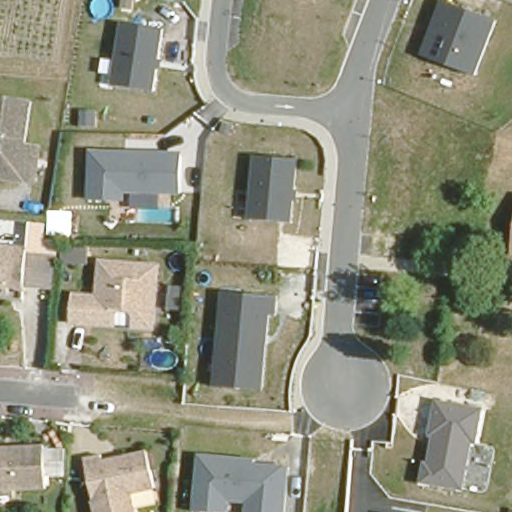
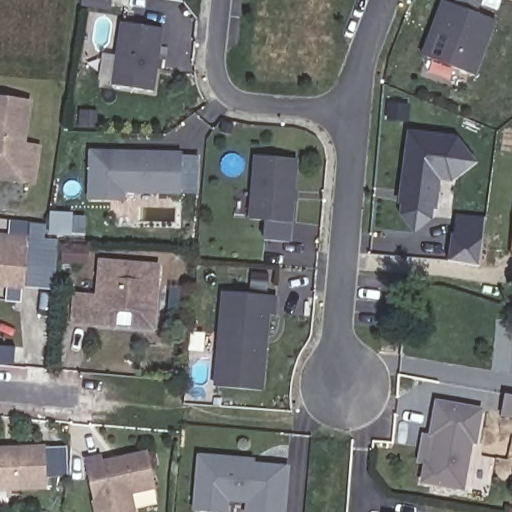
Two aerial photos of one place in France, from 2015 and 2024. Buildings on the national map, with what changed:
unchanged [(476,75),(425,56),(446,1),(497,21),(476,75)]
unchanged [(155,91),(112,85),(125,22),(165,27),(155,91)]
unchanged [(30,102),(24,144),(39,146),(34,184),(16,181),(0,179),(0,98),(30,102)]
new [(406,131),(457,137),(475,162),(452,182),(440,181),(436,210),(434,210),(433,220),(415,235),(400,216),(406,131)]
unchanged [(181,194),(162,193),(162,207),(131,207),(131,194),(128,194),(127,201),(89,199),(92,149),(185,152),(181,194)]
unchanged [(291,222),(247,218),(254,156),(297,159),(291,222)]
new [(455,216),(483,220),(477,264),(447,261),(455,216)]
unchanged [(512,236),(512,247),(510,247),(512,236)]
unchanged [(42,252),(42,242),(57,242),(54,294),(22,291),(26,251),(42,252)]
unchanged [(0,288),(0,248),(26,251),(22,291),(0,288)]
unchanged [(128,334),(129,323),(125,318),(118,317),(112,322),(110,333),(65,328),(69,301),(92,303),(95,268),(156,274),(150,337),(128,334)]
unchanged [(278,315),(270,315),(264,390),(214,385),(224,290),(278,295),(278,315)]
unchanged [(476,451),(471,450),(463,489),(420,482),(425,461),(428,461),(431,437),(426,436),(434,401),(485,410),(476,451)]
unchanged [(286,512),(244,512),(245,502),(232,502),(230,512),(203,512),(192,511),(199,453),(257,458),(257,462),(289,465),(286,512)]
unchanged [(126,497),(130,512),(91,512),(80,463),(97,458),(100,470),(113,467),(118,460),(144,454),(151,491),(126,497)]
unchanged [(0,495),(0,456),(1,456),(1,459),(9,459),(9,455),(41,455),(42,493),(0,495)]

